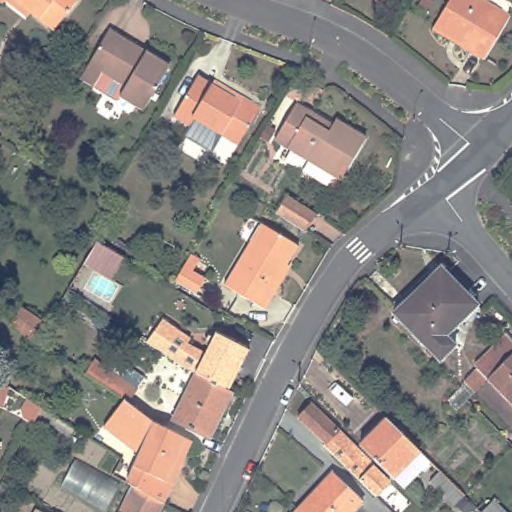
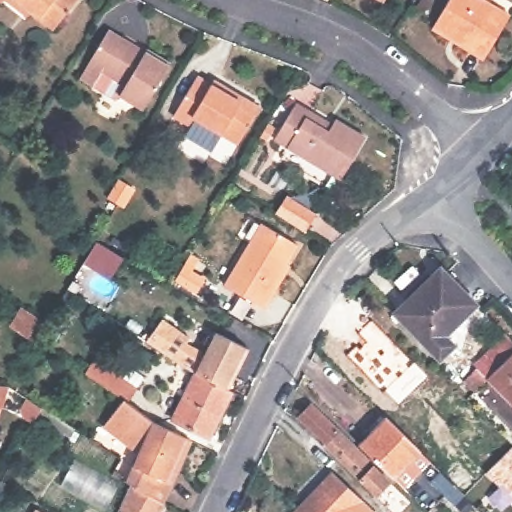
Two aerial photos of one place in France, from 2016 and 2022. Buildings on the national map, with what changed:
unchanged [(5,6),(0,2),(0,0),(9,0),(5,6)]
unchanged [(13,0),(82,0),(58,33),(13,0)]
unchanged [(391,2),(388,0),(392,0),(391,2)]
unchanged [(454,0),(484,0),(512,17),(512,20),(487,62),(436,31),(454,0)]
unchanged [(113,34),(126,42),(124,45),(145,58),(150,52),(172,65),(144,111),(122,97),(128,88),(92,66),(113,34)]
unchanged [(208,86),(210,82),(256,109),(235,144),(193,119),(188,127),(172,117),(195,78),(208,86)]
unchanged [(298,111),(310,119),(308,124),(330,137),(337,126),(367,143),(343,182),(278,145),(298,111)]
unchanged [(288,192),(317,210),(304,231),(274,212),(288,192)]
unchanged [(264,228),(302,252),(276,293),(280,296),(269,315),(228,289),(264,228)]
unchanged [(123,256),(109,277),(83,261),(96,239),(123,256)]
unchanged [(439,269),(476,307),(444,338),(454,347),(438,362),(392,315),(439,269)]
unchanged [(34,342),(31,347),(14,336),(5,328),(17,311),(26,317),(43,327),(34,342)]
unchanged [(191,342),(189,347),(208,356),(218,336),(250,352),(230,393),(197,378),(185,373),(147,346),(163,323),(191,342)]
unchanged [(467,380),(480,366),(477,362),(509,332),(512,335),(512,356),(492,376),(477,390),(467,380)]
unchanged [(512,356),(512,396),(492,376),(512,356)]
unchanged [(93,366),(136,392),(128,406),(84,380),(93,366)]
unchanged [(230,393),(234,395),(212,442),(176,424),(197,378),(230,393)]
unchanged [(139,467),(102,433),(125,407),(158,436),(163,437),(192,451),(163,512),(161,512),(156,510),(155,512),(116,512),(125,495),(139,467)]
unchanged [(341,456),(303,420),(314,407),(359,451),(346,466),(338,458),(341,456)]
unchanged [(389,420),(424,453),(398,481),(363,447),(389,420)]
new [(486,473),(512,449),(512,501),(486,473)]
unchanged [(378,470),(394,486),(380,499),(364,483),(378,470)]
unchanged [(364,501),(354,512),(304,512),(302,510),(334,472),(364,501)]
unchanged [(304,512),(299,512),(302,510),(304,512)]

